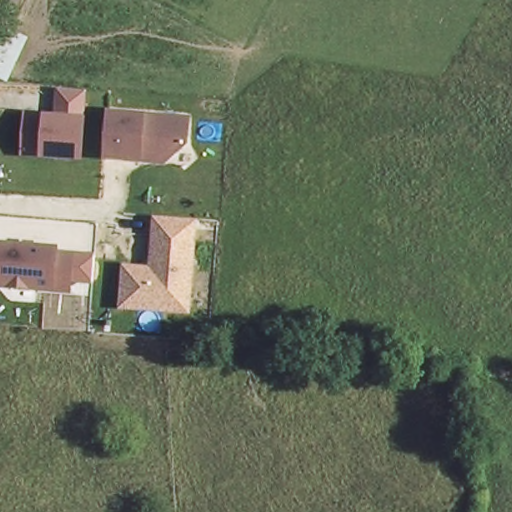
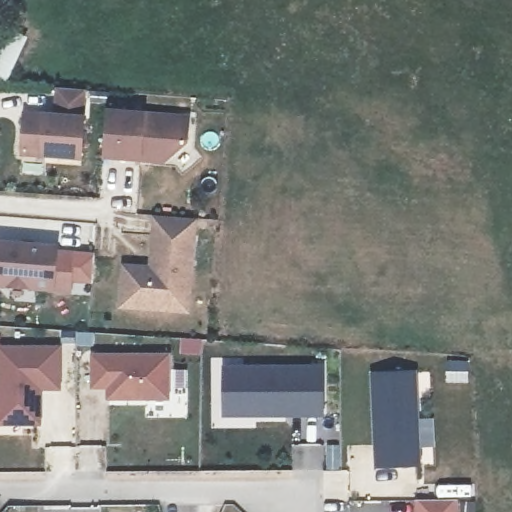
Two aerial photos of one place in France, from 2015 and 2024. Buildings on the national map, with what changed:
unchanged [(10,88),(0,83),(0,53),(4,43),(26,54),(10,88)]
unchanged [(54,113),(55,88),(85,90),(81,160),(19,156),(23,111),(54,113)]
unchanged [(191,113),(190,137),(168,163),(100,159),(103,108),(191,113)]
unchanged [(148,265),(153,216),(197,218),(190,313),(118,309),(122,264),(148,265)]
unchanged [(0,273),(0,261),(1,240),(60,243),(60,248),(76,248),(99,249),(98,260),(98,274),(75,273),(74,284),(8,281),(0,273)]
new [(0,426),(0,345),(61,345),(61,391),(43,391),(43,426),(0,426)]
new [(107,389),(90,389),(91,354),(171,353),(169,400),(106,401),(107,389)]
new [(223,417),(223,366),(324,364),(325,417),(223,417)]
new [(371,373),(417,370),(421,466),(374,469),(371,373)]
new [(458,500),(458,512),(416,512),(416,500),(458,500)]

